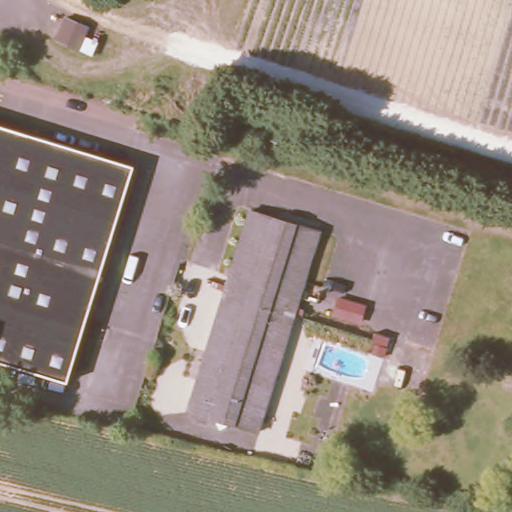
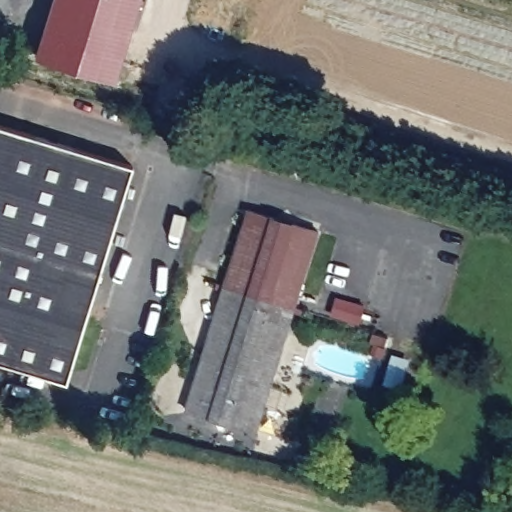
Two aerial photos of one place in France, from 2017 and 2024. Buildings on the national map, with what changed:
new [(136,0),(115,77),(35,54),(49,0),(136,0)]
unchanged [(131,161),(64,375),(0,356),(0,120),(131,161)]
unchanged [(186,405),(248,206),(318,227),(256,426),(186,405)]

